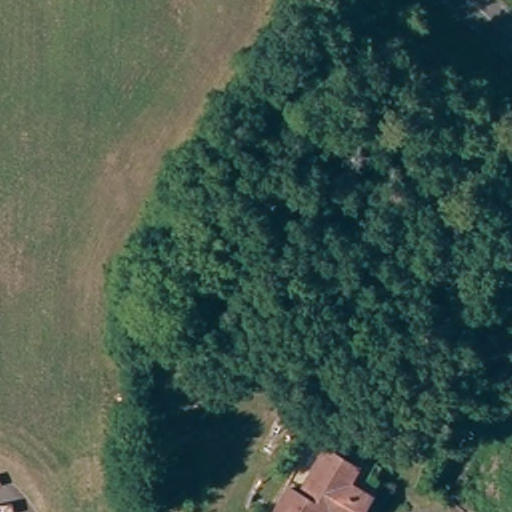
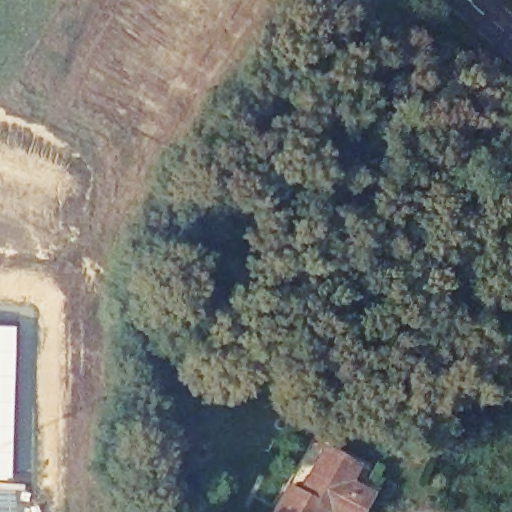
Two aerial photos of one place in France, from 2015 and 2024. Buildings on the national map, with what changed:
new [(14,327),(8,480),(0,480),(0,327),(14,327)]
unchanged [(337,488),(348,495),(341,512),(330,512),(319,506),(316,512),(265,512),(286,472),(301,480),(318,444),(349,461),(337,488)]

